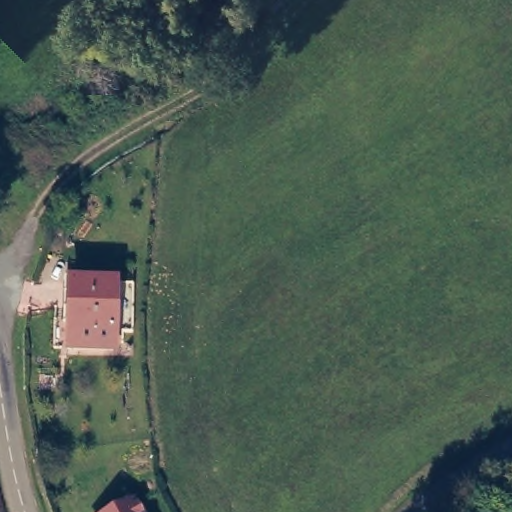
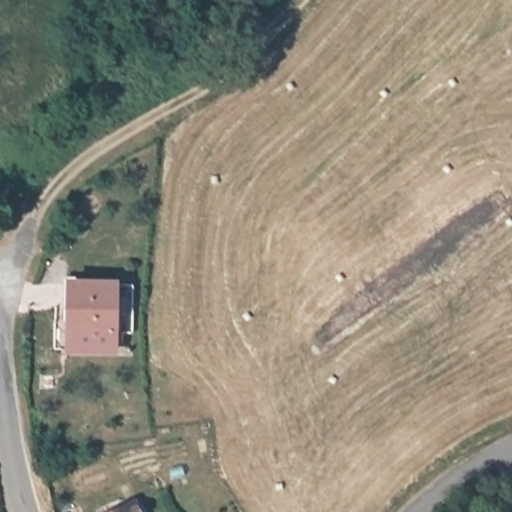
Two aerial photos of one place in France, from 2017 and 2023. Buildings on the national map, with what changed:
unchanged [(65,345),(65,289),(60,288),(60,278),(65,278),(110,280),(108,345),(65,345)]
unchanged [(137,497),(144,512),(110,512),(137,497)]

